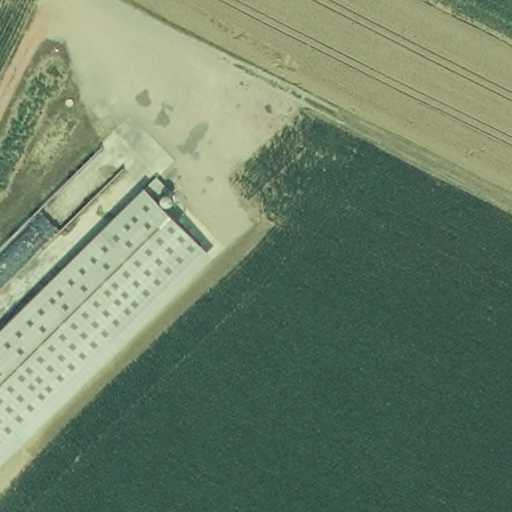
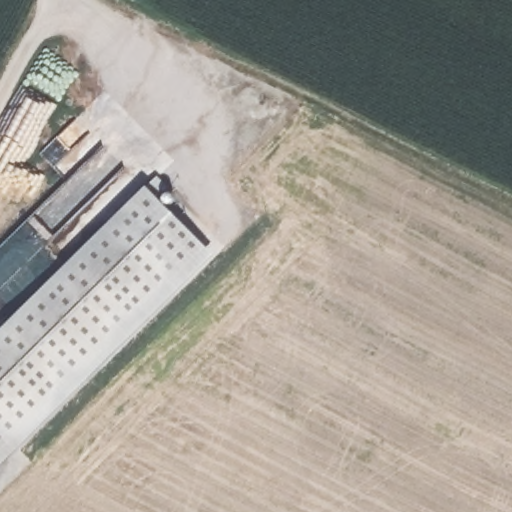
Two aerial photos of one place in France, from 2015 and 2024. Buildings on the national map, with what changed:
unchanged [(214,257),(0,468),(0,335),(148,187),(214,257)]

